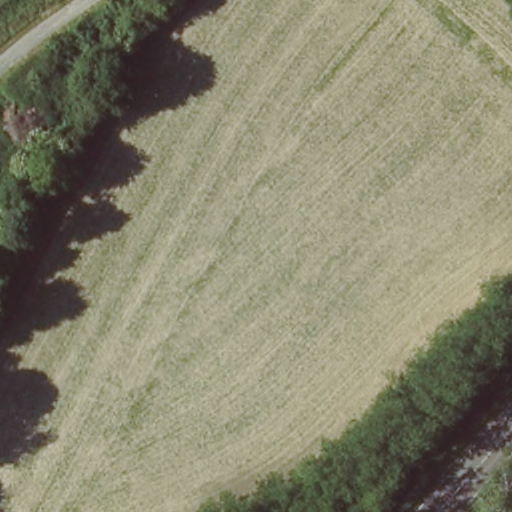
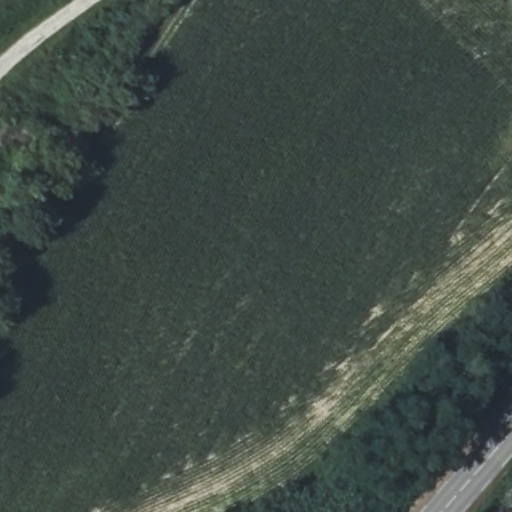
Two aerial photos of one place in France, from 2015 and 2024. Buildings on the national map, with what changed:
[]

